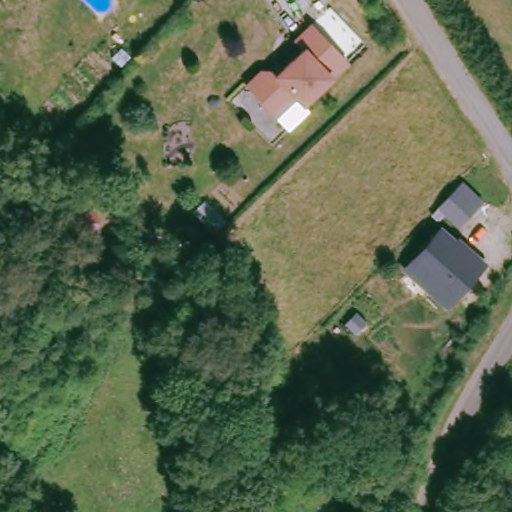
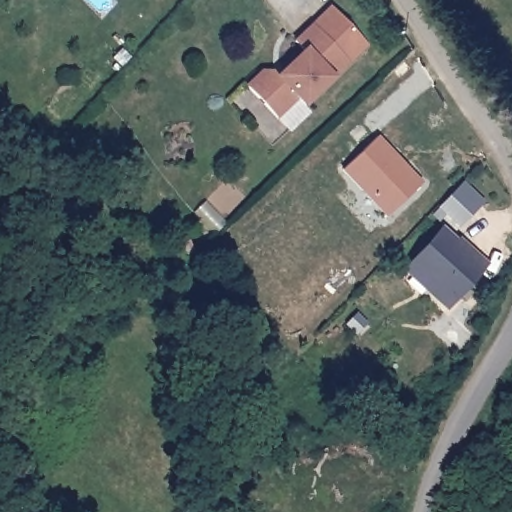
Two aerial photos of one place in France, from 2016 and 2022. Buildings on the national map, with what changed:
new [(367,46),(350,64),(346,59),(312,23),(330,6),(367,46)]
unchanged [(260,65),(272,66),(276,69),(302,46),(292,35),(309,20),(346,59),(301,101),(294,95),(277,110),(245,79),(260,65)]
new [(377,136),(422,183),(386,218),(342,171),(377,136)]
unchanged [(440,207),(463,181),(485,201),(462,227),(440,207)]
unchanged [(94,213),(96,232),(75,231),(73,212),(94,213)]
unchanged [(402,269),(440,225),(459,241),(462,237),(491,265),(450,310),(402,269)]

